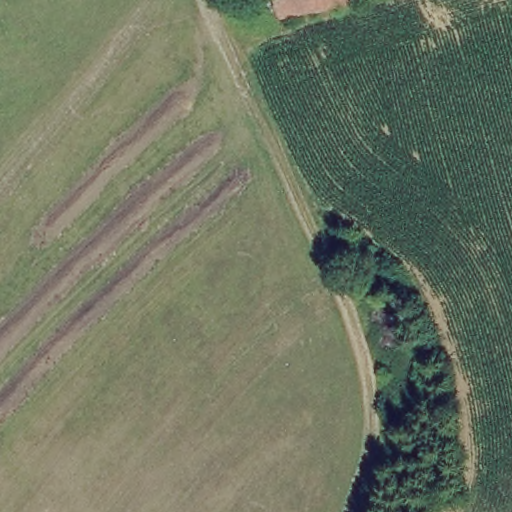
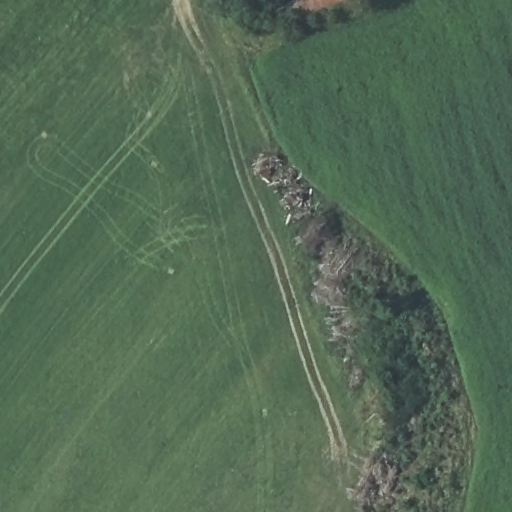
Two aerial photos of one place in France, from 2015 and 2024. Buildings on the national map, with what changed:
unchanged [(348,0),(350,10),(272,25),(267,0),(348,0)]

